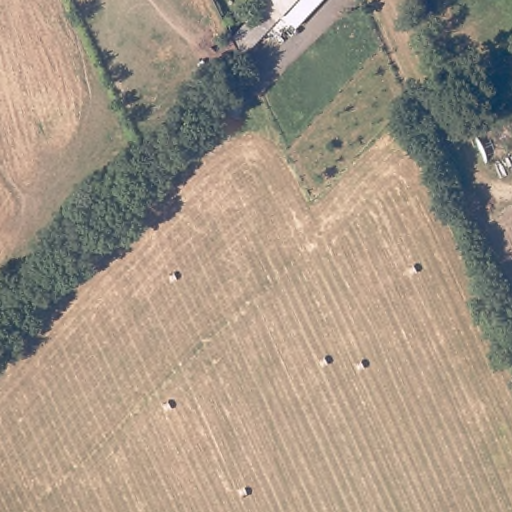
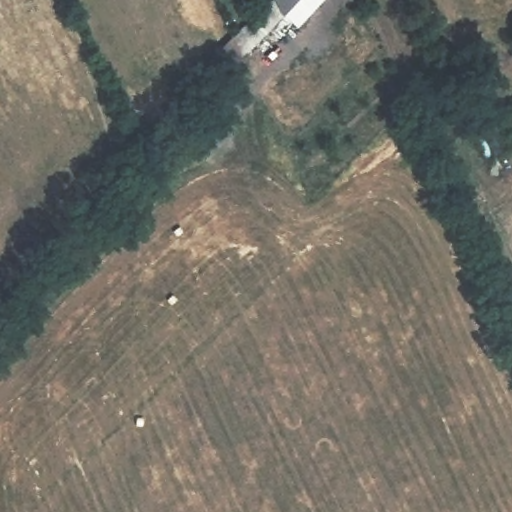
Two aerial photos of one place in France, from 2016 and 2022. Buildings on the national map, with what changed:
unchanged [(274,0),(305,0),(284,22),(283,21),(274,0)]

